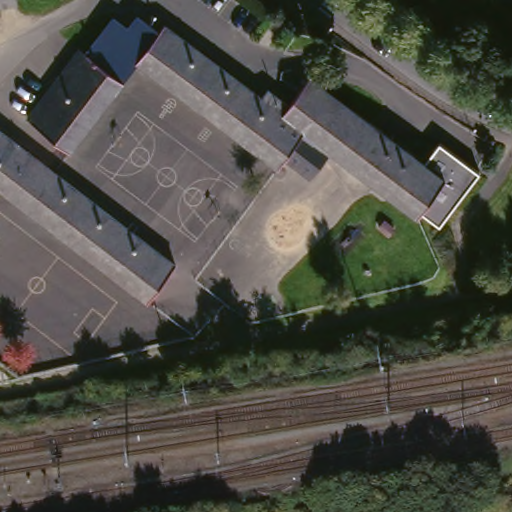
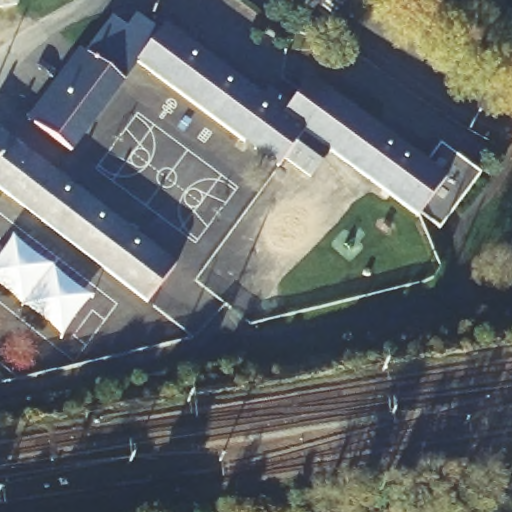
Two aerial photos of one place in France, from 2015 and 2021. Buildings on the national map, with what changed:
unchanged [(14,7),(0,10),(0,0),(13,0),(14,7)]
unchanged [(129,63),(117,81),(81,55),(104,22),(106,20),(122,32),(142,45),(129,63)]
unchanged [(278,159),(271,169),(236,142),(129,63),(142,45),(122,32),(123,31),(129,22),(149,37),(156,29),(158,25),(209,62),(225,74),(258,97),(261,93),(282,109),(302,81),(341,109),(419,166),(438,180),(418,207),(413,214),(411,217),(322,151),(297,132),(278,159)]
unchanged [(117,81),(119,82),(65,153),(29,127),(26,125),(19,118),(72,47),(79,54),(81,55),(117,81)]
unchanged [(322,151),(303,177),(278,159),(297,132),(322,151)]
unchanged [(3,202),(0,199),(0,142),(30,165),(3,202)]
unchanged [(474,175),(434,230),(413,214),(418,207),(438,180),(419,166),(434,146),(474,175)]
unchanged [(50,181),(64,192),(37,227),(3,202),(30,165),(50,181)]
unchanged [(37,227),(64,192),(169,272),(141,307),(89,267),(37,227)]
new [(94,302),(63,342),(0,293),(0,242),(6,235),(94,302)]

